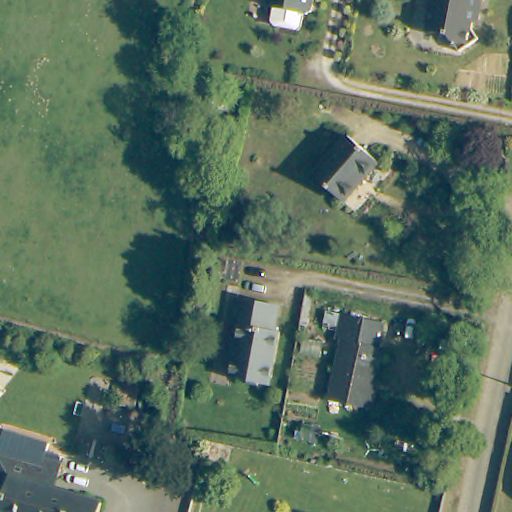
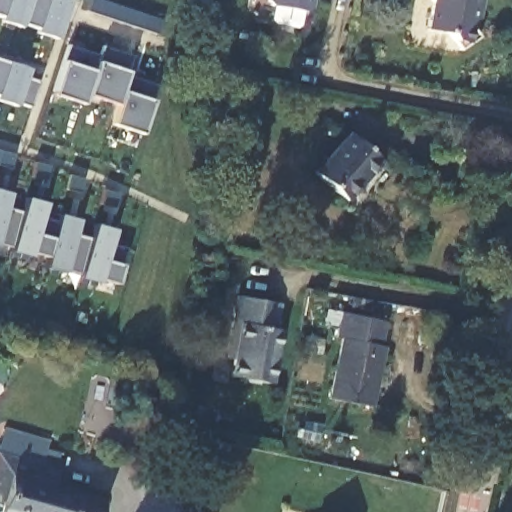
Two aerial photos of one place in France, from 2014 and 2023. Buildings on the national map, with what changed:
new [(33,32),(35,27),(20,23),(19,26),(0,21),(0,0),(61,0),(67,2),(56,39),(33,32)]
new [(90,0),(102,0),(161,19),(158,35),(87,10),(90,0)]
unchanged [(307,5),(304,9),(262,1),(262,0),(308,0),(307,5)]
unchanged [(475,12),(465,12),(463,25),(475,40),(457,53),(442,34),(423,32),(427,4),(424,0),(475,0),(475,12)]
new [(127,71),(125,75),(156,85),(151,100),(140,134),(110,124),(116,104),(85,94),(81,103),(52,94),(63,61),(68,45),(99,56),(102,46),(132,56),(127,71)]
new [(16,102),(15,107),(0,101),(0,60),(27,69),(24,77),(39,82),(30,108),(16,102)]
unchanged [(371,156),(338,197),(308,173),(341,131),(371,156)]
new [(115,282),(99,277),(97,282),(79,277),(80,271),(65,266),(62,273),(42,267),(46,256),(30,251),(29,256),(10,250),(11,244),(0,241),(0,191),(9,193),(5,205),(20,210),(24,197),(44,203),(40,216),(56,221),(57,214),(77,220),(75,232),(89,236),(92,224),(112,230),(109,242),(125,248),(121,265),(115,282)]
unchanged [(236,280),(215,276),(218,255),(240,257),(236,280)]
unchanged [(275,322),(280,324),(271,372),(260,370),(258,375),(246,373),(246,368),(233,365),(236,339),(225,337),(235,292),(278,299),(275,322)]
unchanged [(375,346),(377,347),(363,409),(322,401),(335,338),(329,336),(335,313),(381,322),(375,346)]
unchanged [(14,444),(54,455),(60,456),(56,472),(54,488),(100,500),(97,512),(0,512),(0,457),(10,460),(14,444)]

